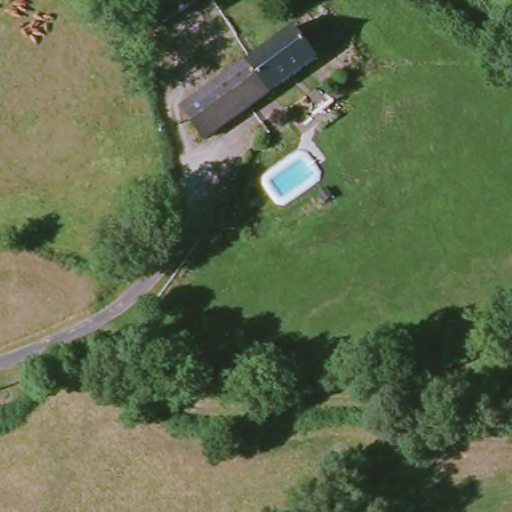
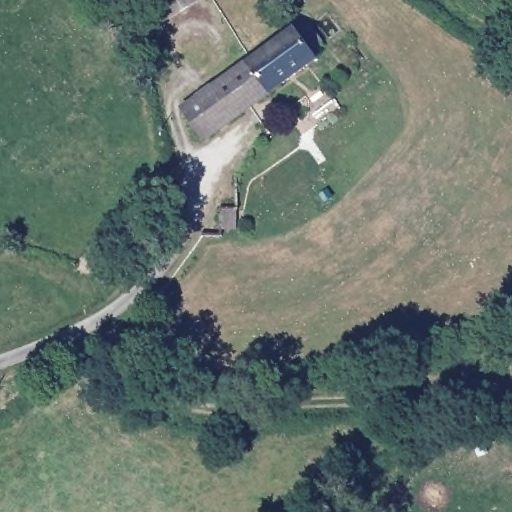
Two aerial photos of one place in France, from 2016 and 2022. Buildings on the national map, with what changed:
unchanged [(153,0),(200,0),(164,20),(153,0)]
unchanged [(316,60),(206,141),(183,110),(210,90),(292,28),(316,60)]

